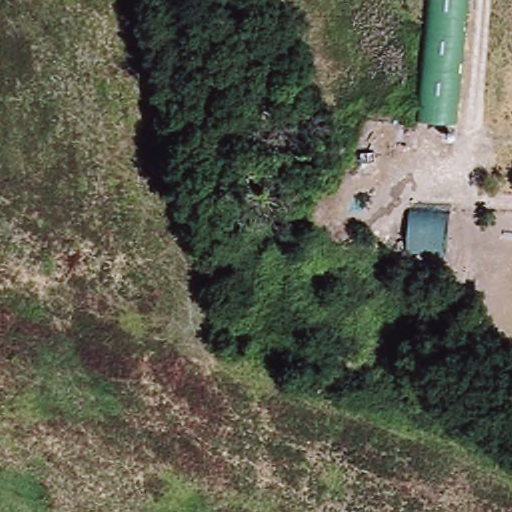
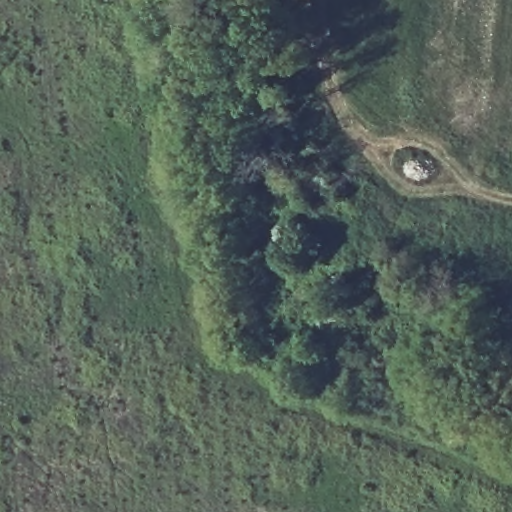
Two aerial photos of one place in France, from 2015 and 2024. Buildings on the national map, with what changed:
demolished [(444,132),(444,123),(416,122),(427,0),(468,0),(456,134),(444,132)]
demolished [(412,205),(452,212),(447,248),(407,243),(412,205)]

